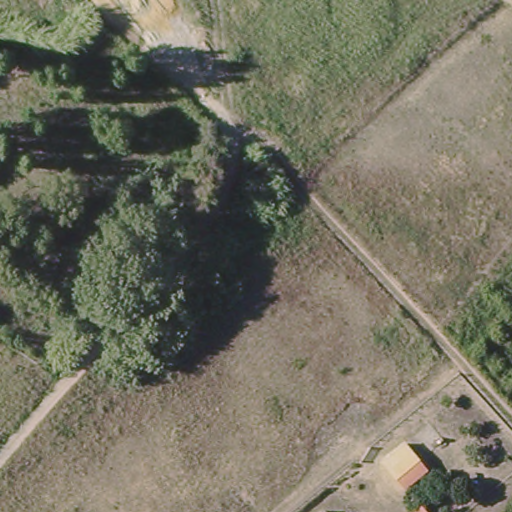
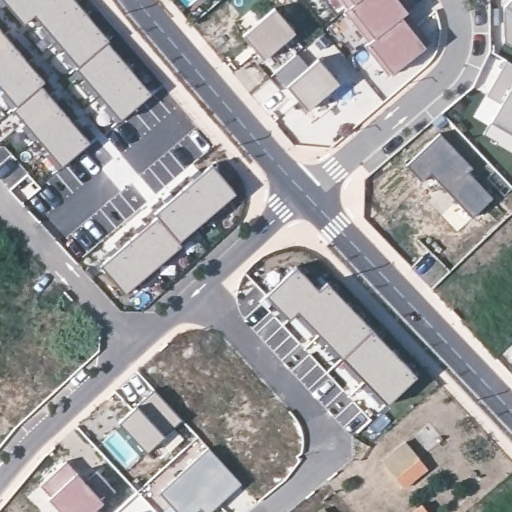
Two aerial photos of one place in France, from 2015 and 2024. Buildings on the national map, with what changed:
new [(120,121),(77,70),(79,67),(33,16),(22,25),(0,0),(75,0),(110,40),(107,43),(151,94),(120,121)]
new [(393,73),(369,44),(371,42),(347,13),(350,10),(341,0),(410,0),(415,5),(408,12),(432,43),(393,73)]
new [(503,7),(509,0),(512,0),(512,46),(505,42),(503,7)]
new [(293,34),(263,58),(244,37),(275,10),(293,34)]
new [(62,168),(13,111),(16,108),(0,89),(0,29),(45,82),(40,86),(90,143),(62,168)]
new [(297,55),(307,68),(318,59),(339,82),(307,110),(276,73),(297,55)]
new [(498,104),(483,96),(504,60),(512,64),(512,151),(482,134),(487,124),(498,104)]
new [(438,134),(471,169),(466,173),(491,199),(471,219),(429,174),(420,182),(404,166),(438,134)]
new [(178,242),(181,246),(125,295),(102,268),(158,218),(154,214),(211,165),(235,194),(178,242)]
new [(387,406),(297,313),(289,320),(266,296),(296,268),(318,291),(327,283),(417,378),(387,406)]
new [(155,391),(181,420),(147,452),(119,422),(155,391)]
unchanged [(392,474),(377,456),(401,437),(415,454),(423,464),(400,484),(392,474)]
new [(208,447),(241,483),(208,512),(203,512),(200,508),(195,512),(177,512),(159,492),(208,447)]
new [(105,502),(93,512),(61,512),(39,486),(67,461),(105,502)]
unchanged [(330,512),(305,512),(320,500),(330,512)]
unchanged [(426,512),(412,512),(421,505),(426,512)]

